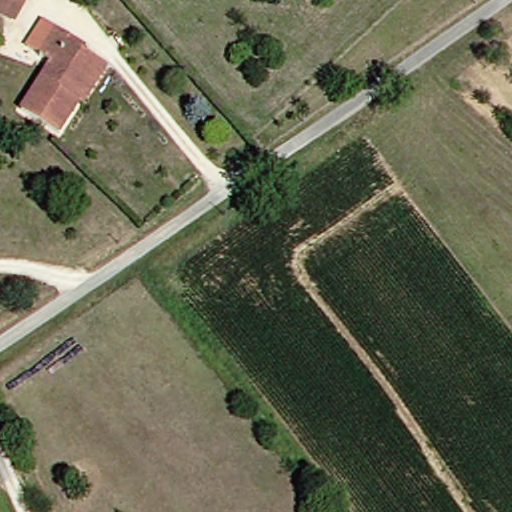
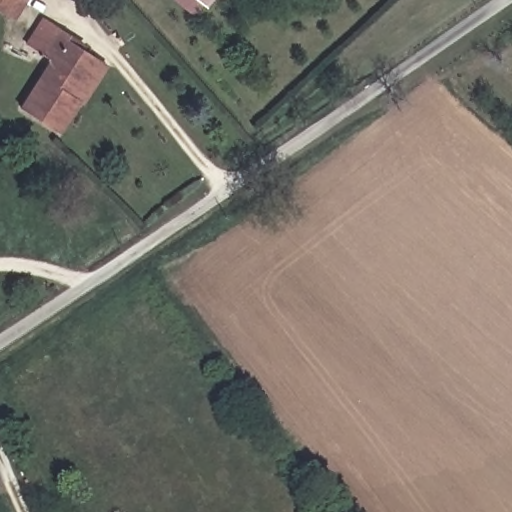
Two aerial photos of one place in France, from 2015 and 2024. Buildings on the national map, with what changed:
unchanged [(0,0),(25,0),(11,20),(0,11),(0,0)]
new [(197,17),(175,0),(211,0),(197,17)]
unchanged [(76,102),(83,108),(56,139),(20,110),(58,67),(47,56),(68,33),(108,65),(76,102)]

